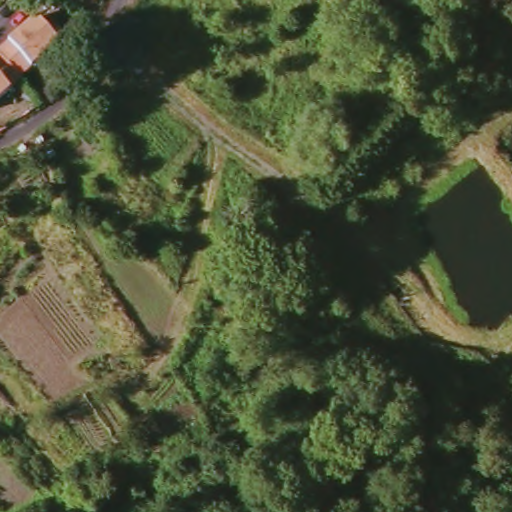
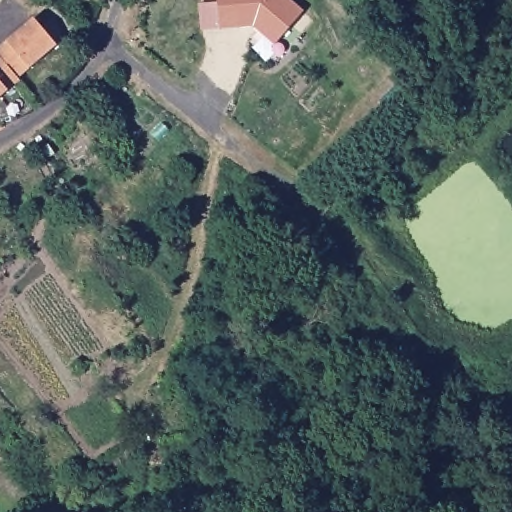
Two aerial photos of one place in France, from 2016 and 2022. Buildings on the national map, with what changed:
new [(292,0),(304,11),(275,45),(253,27),(220,29),(218,0),(292,0)]
unchanged [(7,52),(47,20),(69,46),(30,80),(31,82),(0,108),(0,62),(9,55),(7,52)]

